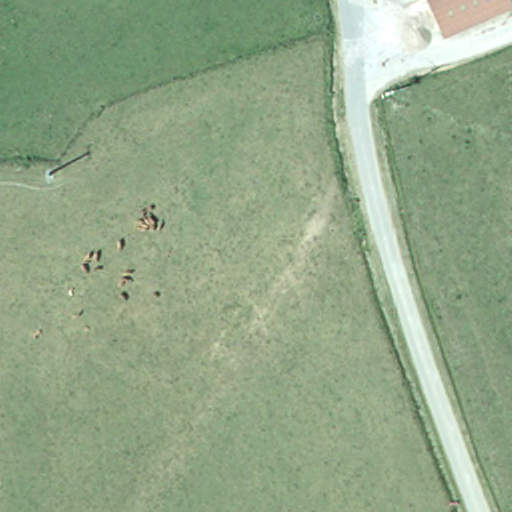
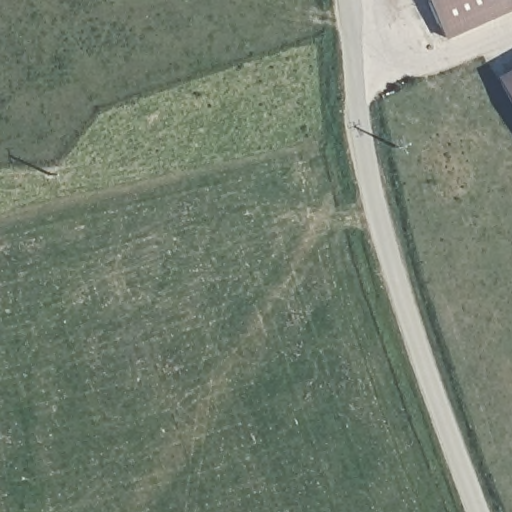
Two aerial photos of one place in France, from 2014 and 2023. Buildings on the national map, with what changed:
unchanged [(428,0),(509,0),(442,32),(428,0)]
new [(512,67),(512,106),(496,77),(512,67)]

